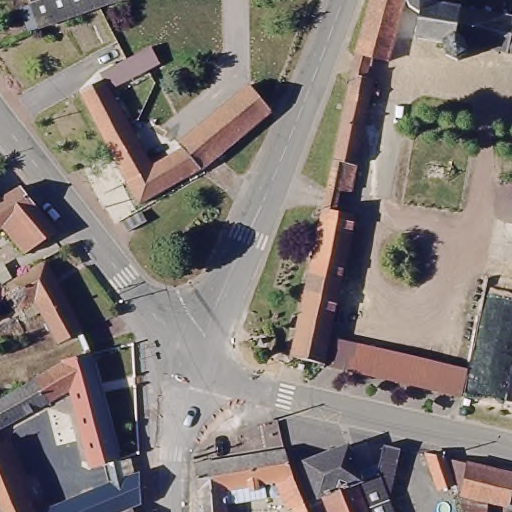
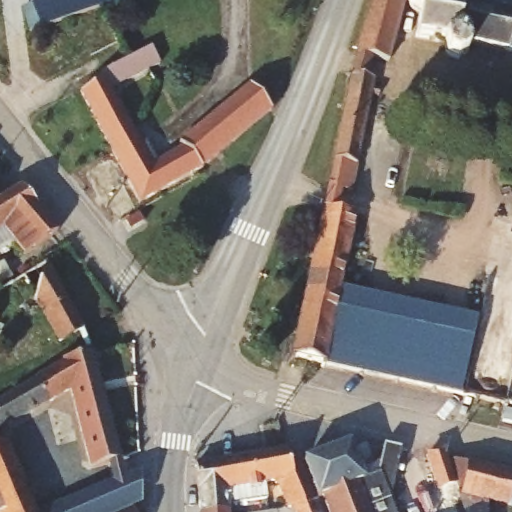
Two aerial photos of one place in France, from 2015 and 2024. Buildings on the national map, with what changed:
unchanged [(29,4),(42,0),(125,0),(70,15),(34,25),(29,4)]
unchanged [(355,28),(358,18),(364,0),(405,0),(410,8),(411,38),(388,33),(385,46),(365,42),(362,62),(375,64),(363,127),(360,126),(347,122),(341,120),(336,119),(336,118),(355,28)]
unchanged [(427,3),(430,4),(503,18),(503,16),(505,10),(512,12),(512,56),(472,49),(471,55),(457,52),(450,59),(438,49),(438,43),(411,38),(410,8),(405,0),(427,0),(427,3)]
unchanged [(93,81),(120,62),(152,39),(160,50),(111,84),(150,159),(182,138),(178,134),(220,99),(242,82),(265,110),(198,165),(136,202),(80,91),(93,81)]
unchanged [(328,367),(320,365),(321,361),(298,356),(297,355),(290,358),(287,355),(288,354),(294,350),(295,341),(290,340),(291,334),(296,335),(300,319),(294,318),(295,311),(301,312),(304,296),(299,295),(300,288),(305,289),(307,273),(303,273),(305,266),(310,267),(312,251),(308,251),(309,244),(315,245),(316,228),(312,227),(313,221),(318,222),(336,119),(341,120),(347,122),(360,126),(363,127),(350,189),(337,187),(333,203),(355,210),(333,339),(329,362),(328,367)]
unchanged [(19,180),(58,229),(21,256),(0,227),(0,194),(19,180)]
demolished [(512,215),(512,253),(507,252),(510,232),(482,227),(485,210),(512,215)]
unchanged [(3,267),(10,279),(42,260),(45,259),(85,337),(72,343),(68,335),(59,339),(37,297),(0,318),(0,269),(3,267)]
new [(328,367),(329,362),(333,339),(341,288),(477,317),(460,393),(328,367)]
unchanged [(265,332),(274,334),(272,342),(263,340),(265,332)]
unchanged [(40,381),(63,367),(65,367),(96,360),(125,473),(95,483),(76,402),(0,440),(0,402),(40,381)]
unchanged [(397,445),(387,497),(392,512),(375,512),(353,464),(373,455),(375,440),(397,445)]
unchanged [(277,441),(299,498),(305,512),(291,512),(285,497),(280,499),(270,473),(254,477),(257,494),(220,502),(221,512),(197,512),(190,460),(190,457),(277,441)]
unchanged [(353,464),(375,512),(322,512),(315,494),(311,496),(297,458),(345,441),(353,464)]
unchanged [(7,446),(10,452),(0,457),(0,449),(7,446)]
unchanged [(476,512),(460,512),(449,479),(433,484),(421,451),(441,455),(512,472),(512,505),(485,498),(476,512)]
unchanged [(10,452),(38,512),(0,512),(0,457),(10,452)]
unchanged [(136,512),(83,512),(129,491),(136,512)]

